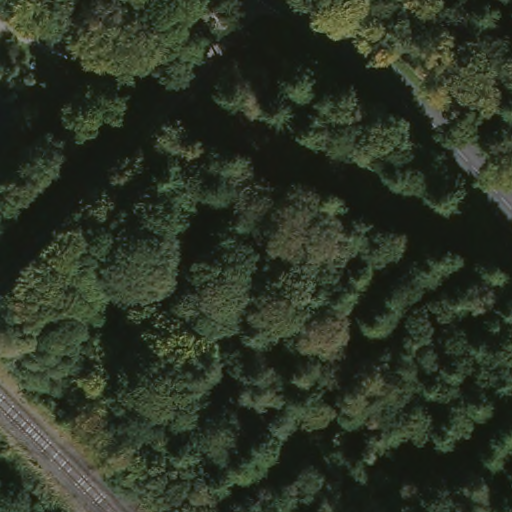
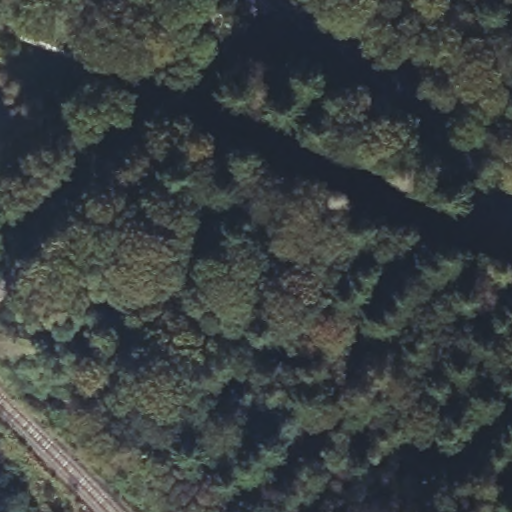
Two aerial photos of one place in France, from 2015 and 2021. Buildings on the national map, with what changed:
unchanged [(14,32),(68,54),(59,77),(5,55),(14,32)]
unchanged [(0,379),(0,336),(8,327),(30,350),(1,380),(0,379)]

